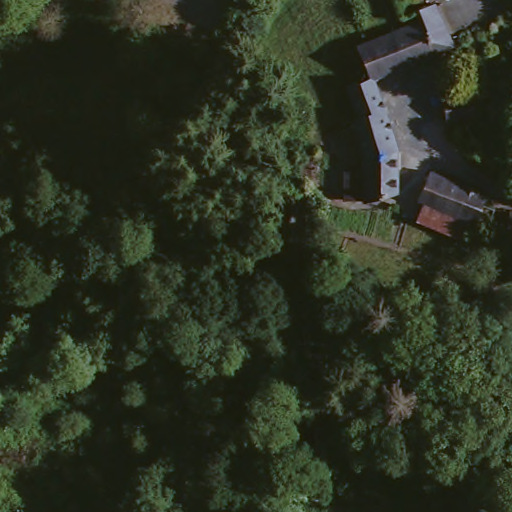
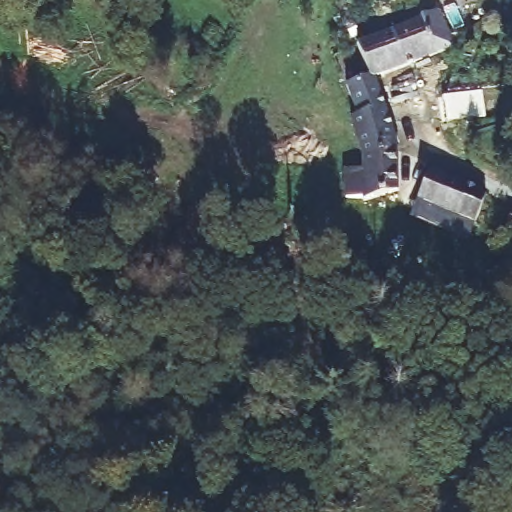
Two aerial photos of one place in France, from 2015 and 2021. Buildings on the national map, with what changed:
unchanged [(419,6),(435,0),(440,0),(456,44),(437,51),(424,18),(421,10),(419,6)]
unchanged [(437,51),(401,65),(388,32),(424,18),(437,51)]
unchanged [(401,65),(377,75),(371,76),(360,44),(388,32),(401,65)]
unchanged [(383,97),(399,150),(361,160),(350,126),(348,116),(357,114),(349,86),(355,83),(371,76),(377,75),(383,97)]
unchanged [(475,121),(460,123),(446,124),(443,99),(446,98),(448,98),(472,96),(475,121)]
unchanged [(400,191),(362,198),(361,160),(399,150),(400,191)]
unchanged [(426,221),(432,204),(423,201),(435,172),(494,194),(490,205),(501,209),(495,228),(478,221),(471,238),(426,221)]

